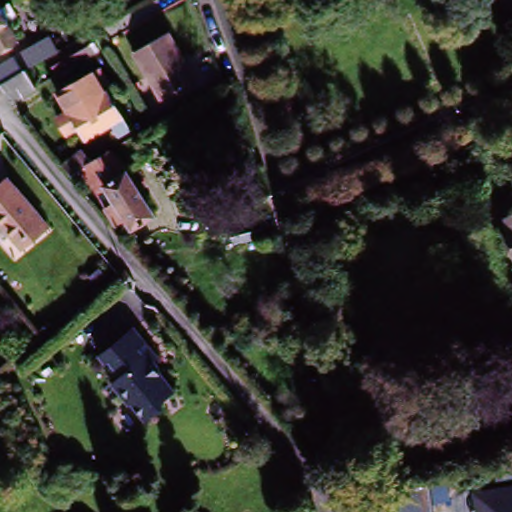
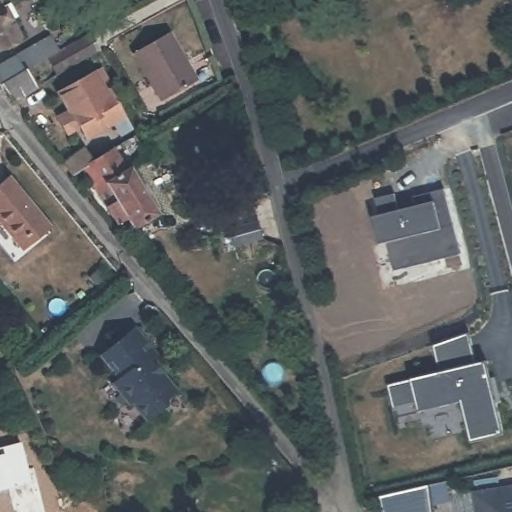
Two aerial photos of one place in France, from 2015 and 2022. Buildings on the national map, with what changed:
unchanged [(16,11),(25,28),(17,31),(24,45),(4,56),(0,49),(0,0),(1,0),(9,16),(16,11)]
unchanged [(194,80),(160,98),(137,54),(170,36),(194,80)]
unchanged [(6,83),(0,72),(0,69),(55,38),(63,51),(87,38),(97,55),(54,78),(45,61),(29,70),(37,84),(15,94),(6,83)]
unchanged [(69,126),(78,121),(70,106),(63,90),(97,72),(105,88),(111,85),(126,114),(120,116),(129,134),(117,140),(114,134),(89,145),(87,141),(78,146),(69,126)]
unchanged [(124,238),(86,171),(75,178),(69,169),(88,157),(94,166),(120,151),(159,217),(124,238)]
unchanged [(0,181),(4,178),(40,221),(46,227),(19,249),(13,242),(0,227),(0,181)]
new [(460,256),(395,271),(388,241),(377,244),(371,218),(380,216),(375,196),(395,191),(400,208),(418,204),(415,193),(443,186),(460,256)]
demolished [(504,224),(512,222),(512,255),(504,224)]
unchanged [(257,236),(278,227),(285,243),(264,252),(257,236)]
unchanged [(161,352),(154,358),(159,363),(161,363),(173,377),(172,387),(165,394),(167,398),(149,413),(135,397),(132,399),(116,380),(122,374),(104,352),(137,324),(161,352)]
new [(477,364),(485,362),(502,434),(470,442),(461,401),(418,412),(417,404),(395,413),(387,385),(410,380),(441,372),(431,345),(469,331),(477,364)]
new [(31,484),(0,491),(0,449),(24,445),(31,484)]
unchanged [(388,500),(429,490),(435,512),(391,512),(388,500)]
unchanged [(475,505),(512,495),(512,512),(476,512),(475,505)]

